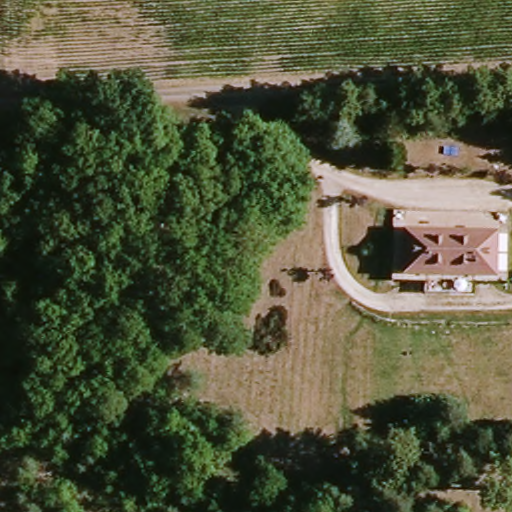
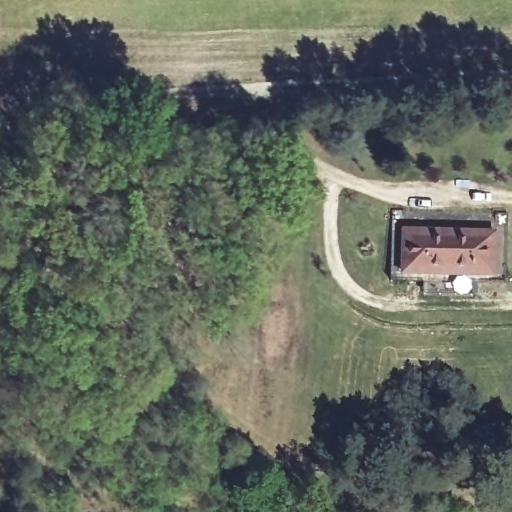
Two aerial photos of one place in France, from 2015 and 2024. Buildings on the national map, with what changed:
unchanged [(482,232),(481,212),(497,212),(499,277),(385,282),(381,216),(396,216),(396,234),(482,232)]

